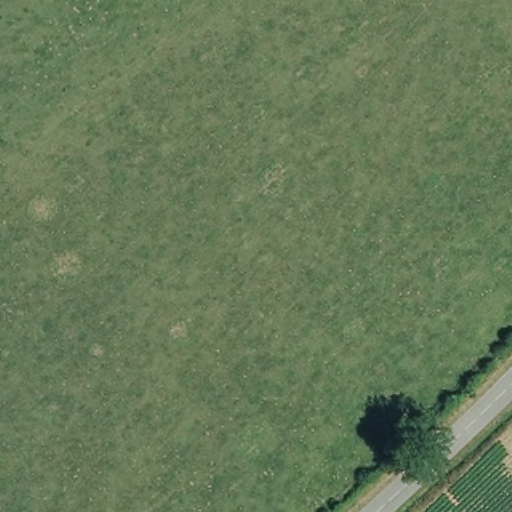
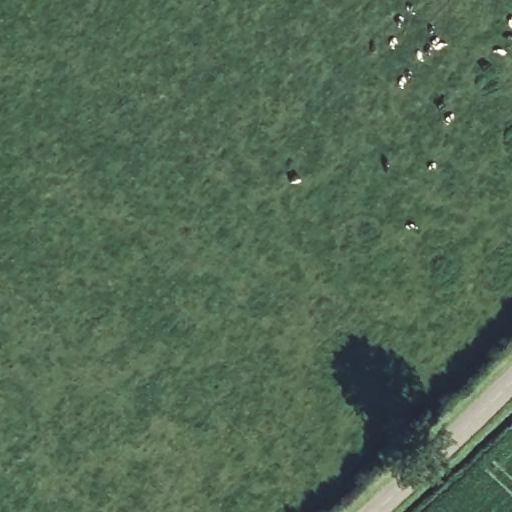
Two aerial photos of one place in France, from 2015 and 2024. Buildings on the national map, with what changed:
[]

